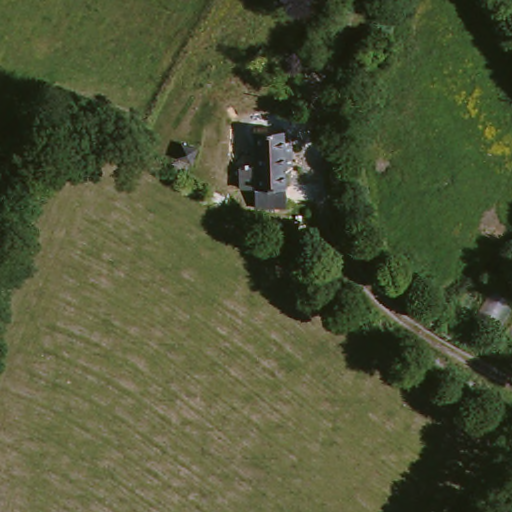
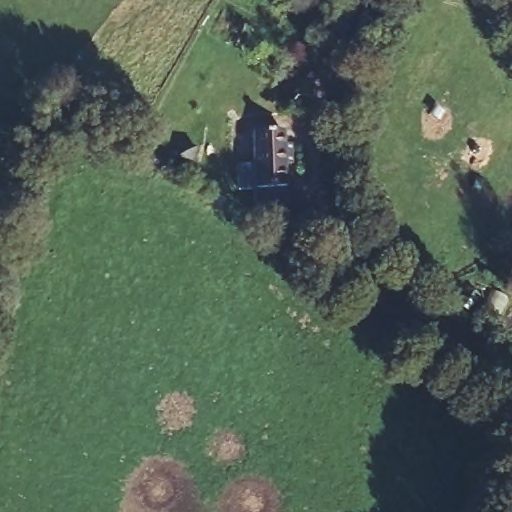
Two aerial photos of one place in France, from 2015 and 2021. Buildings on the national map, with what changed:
unchanged [(285,205),(285,211),(254,210),(255,190),(241,189),(242,168),(257,169),(259,134),(265,134),(289,136),(285,205)]

